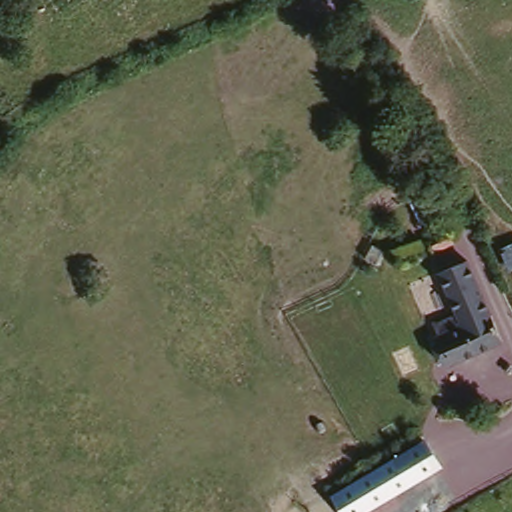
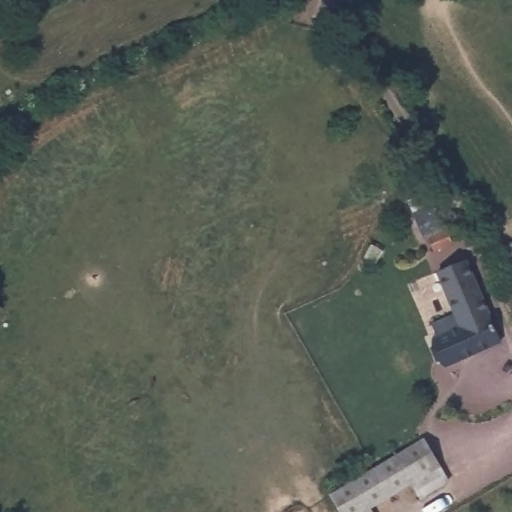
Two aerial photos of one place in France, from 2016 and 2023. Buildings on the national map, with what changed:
unchanged [(425,194),(437,218),(419,227),(407,202),(425,194)]
unchanged [(444,234),(451,243),(433,251),(430,240),(444,234)]
unchanged [(490,248),(512,238),(512,269),(501,274),(490,248)]
unchanged [(462,263),(478,304),(497,344),(442,368),(430,341),(433,340),(428,327),(452,317),(434,275),(462,263)]
unchanged [(442,466),(367,512),(340,512),(330,496),(425,438),(442,466)]

